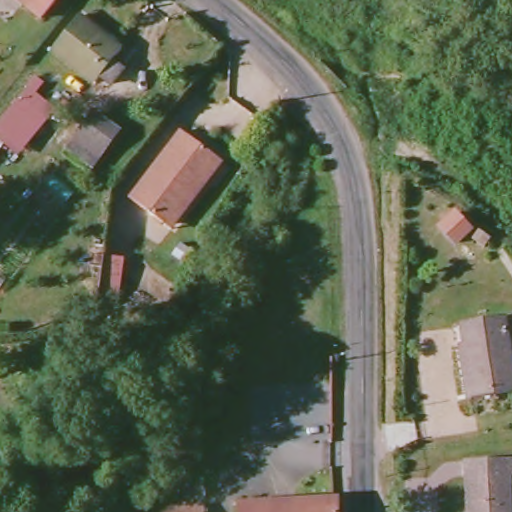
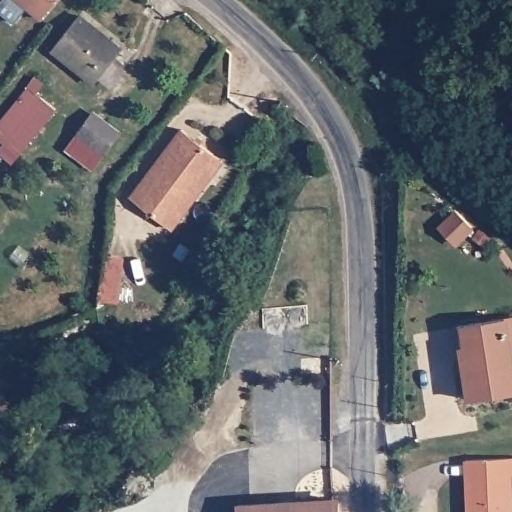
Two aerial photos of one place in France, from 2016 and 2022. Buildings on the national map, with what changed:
unchanged [(55,0),(38,21),(13,0),(55,0)]
unchanged [(115,60),(124,67),(112,84),(102,76),(98,82),(55,47),(81,14),(123,49),(115,60)]
unchanged [(28,145),(20,138),(3,125),(31,90),(29,89),(36,80),(44,87),(38,95),(48,103),(42,110),(51,117),(28,145)]
unchanged [(103,153),(80,134),(98,112),(121,131),(103,153)]
unchanged [(168,231),(163,227),(129,199),(179,132),(212,157),(221,164),(168,231)]
unchanged [(475,400),(463,327),(509,319),(512,319),(512,393),(475,400)]
unchanged [(471,462),(512,458),(512,512),(475,512),(471,462)]
unchanged [(339,502),(339,512),(239,512),(238,506),(339,502)]

